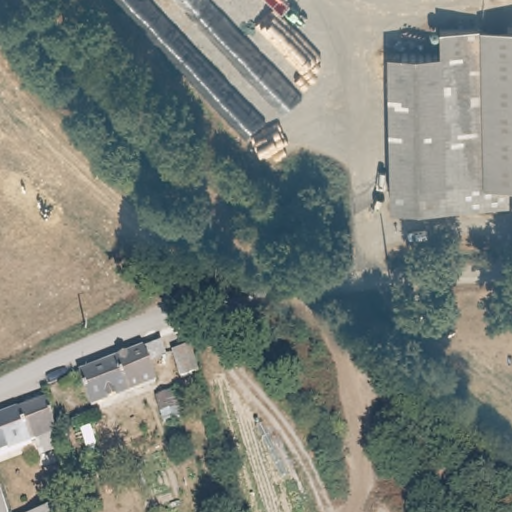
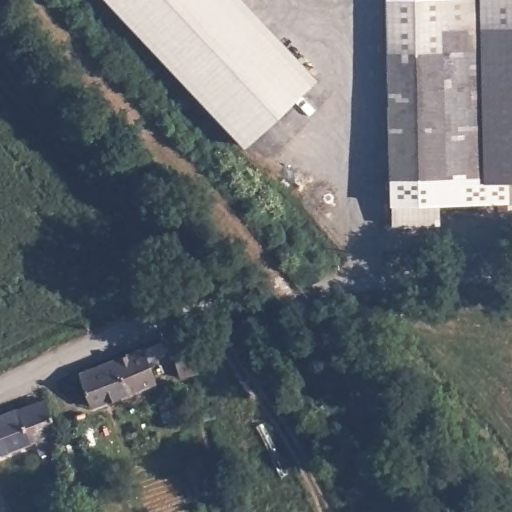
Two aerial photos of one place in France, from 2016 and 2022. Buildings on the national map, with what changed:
new [(104,0),(245,0),(318,78),(244,148),(104,0)]
new [(438,56),(390,60),(386,60),(385,0),(512,0),(512,28),(439,30),(438,56)]
unchanged [(512,181),(510,181),(509,177),(396,184),(390,60),(438,56),(439,30),(512,28),(512,181)]
unchanged [(511,203),(399,208),(396,184),(509,177),(510,181),(511,203)]
unchanged [(186,343),(195,371),(176,377),(168,355),(148,362),(154,381),(92,406),(80,375),(163,338),(167,349),(186,343)]
unchanged [(173,391),(182,417),(165,424),(157,396),(173,391)]
unchanged [(57,441),(59,448),(40,454),(36,444),(4,456),(0,443),(0,416),(47,396),(57,441)]
unchanged [(4,456),(0,458),(0,443),(4,456)]
unchanged [(71,512),(52,512),(70,508),(71,512)]

